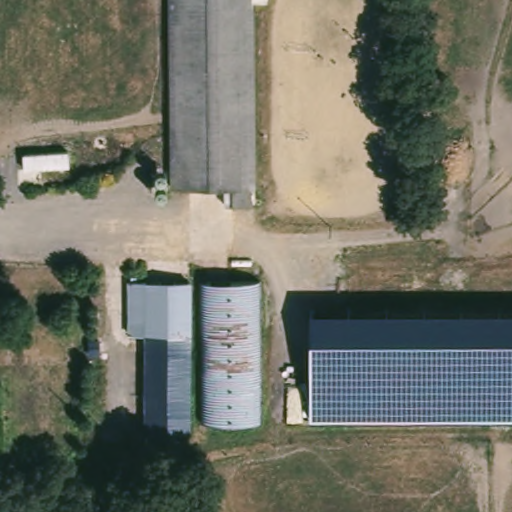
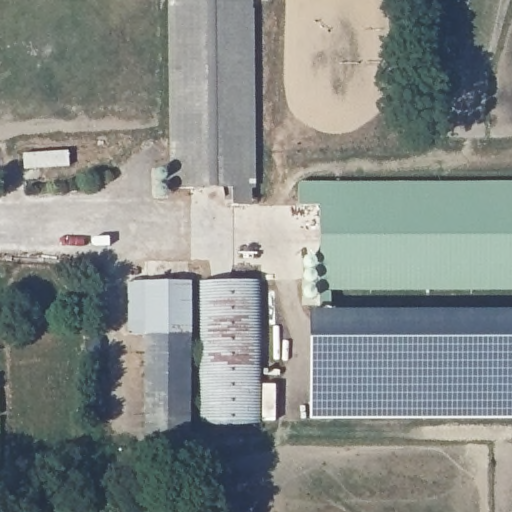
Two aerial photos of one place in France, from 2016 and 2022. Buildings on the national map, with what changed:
unchanged [(237,209),(236,191),(175,192),(169,0),(253,0),(259,208),(237,209)]
new [(512,288),(316,288),(316,293),(314,297),(313,298),(310,298),(306,297),(304,296),(305,266),(305,262),(307,258),(310,257),(321,258),(321,204),(299,205),(299,184),(512,182),(512,288)]
unchanged [(189,433),(142,432),(142,335),(126,334),(128,278),(190,281),(189,433)]
unchanged [(258,282),(259,426),(206,427),(205,283),(258,282)]
unchanged [(310,312),(512,312),(512,417),(310,419),(310,312)]

